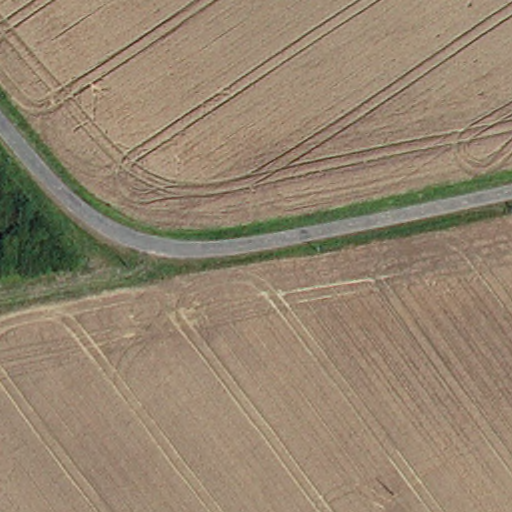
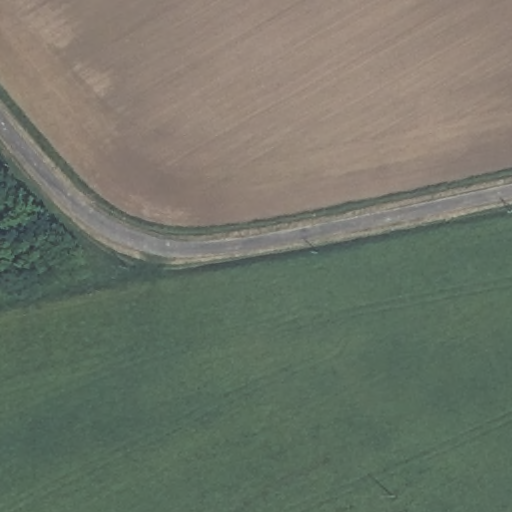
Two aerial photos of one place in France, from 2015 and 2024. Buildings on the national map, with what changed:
[]

